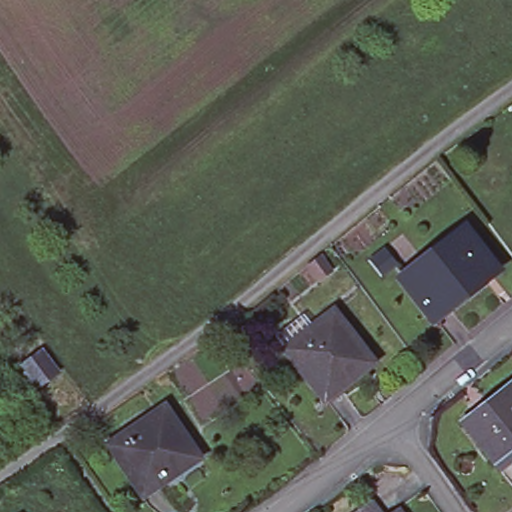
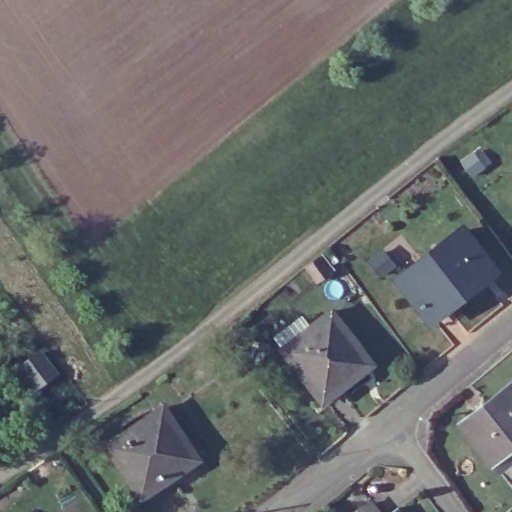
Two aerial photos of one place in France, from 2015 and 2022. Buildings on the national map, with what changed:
unchanged [(465,232),(495,272),(430,320),(401,280),(465,232)]
unchanged [(371,237),(383,252),(373,260),(361,245),(371,237)]
unchanged [(323,256),(334,270),(323,278),(311,264),(323,256)]
unchanged [(279,336),(292,325),(301,336),(334,309),(373,358),(343,382),(346,385),(326,401),(285,348),(287,347),(279,336)]
unchanged [(43,351),(57,372),(36,387),(21,366),(43,351)]
unchanged [(493,457),(467,425),(463,420),(484,401),(512,378),(512,455),(500,466),(493,457)]
unchanged [(163,406),(196,455),(160,479),(163,482),(141,496),(106,445),(163,406)]
unchanged [(382,512),(357,512),(374,501),(382,512)]
unchanged [(393,512),(400,507),(404,512),(393,512)]

